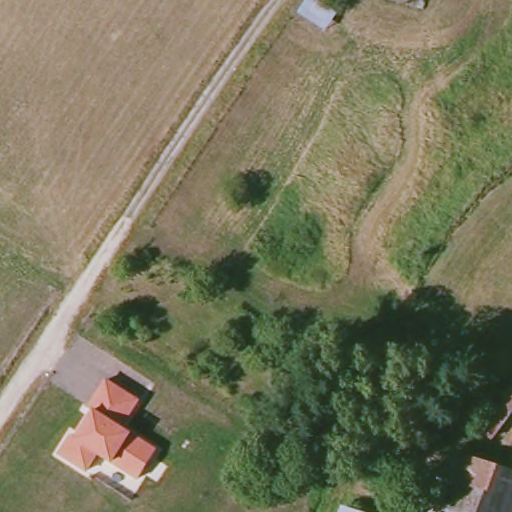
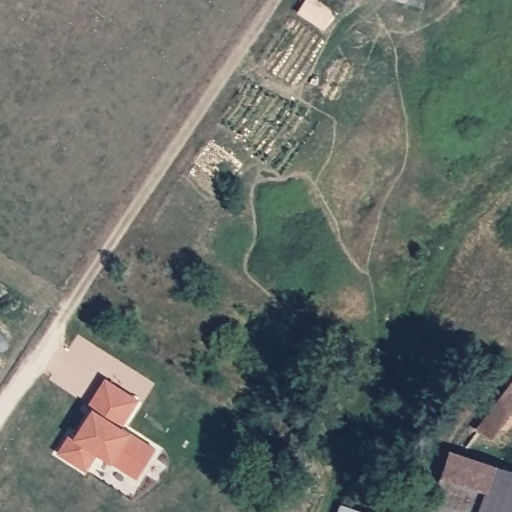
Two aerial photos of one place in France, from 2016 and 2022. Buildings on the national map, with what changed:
unchanged [(120,427),(154,448),(137,477),(97,455),(86,470),(57,453),(102,376),(139,397),(120,427)]
unchanged [(512,412),(491,440),(477,431),(512,381),(512,412)]
unchanged [(512,512),(481,512),(488,490),(444,477),(452,451),(462,453),(512,469),(512,512)]
unchanged [(481,512),(462,512),(462,511),(433,506),(444,477),(488,490),(481,512)]
unchanged [(357,512),(339,512),(341,506),(357,512)]
unchanged [(462,512),(431,512),(433,506),(462,511),(462,512)]

